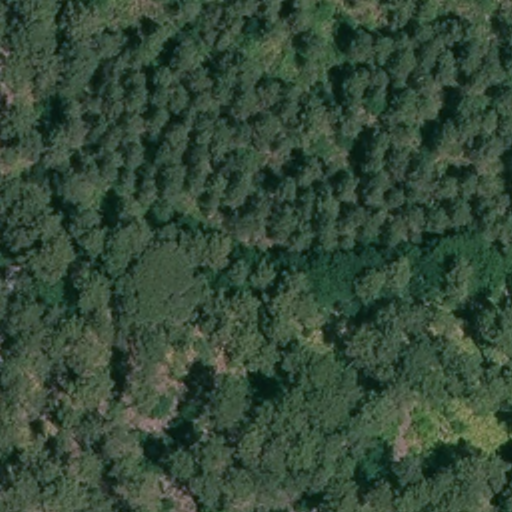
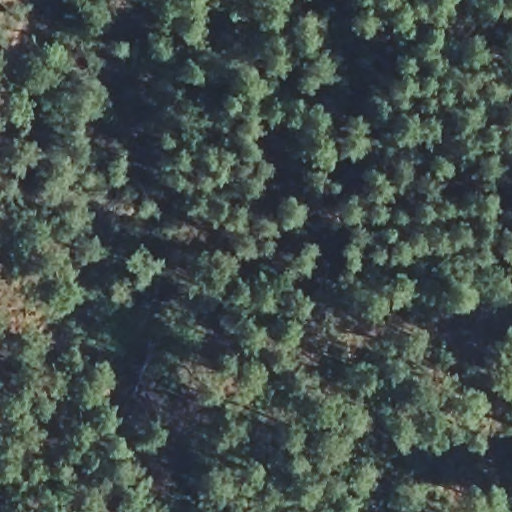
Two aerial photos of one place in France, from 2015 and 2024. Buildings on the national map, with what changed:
[]

